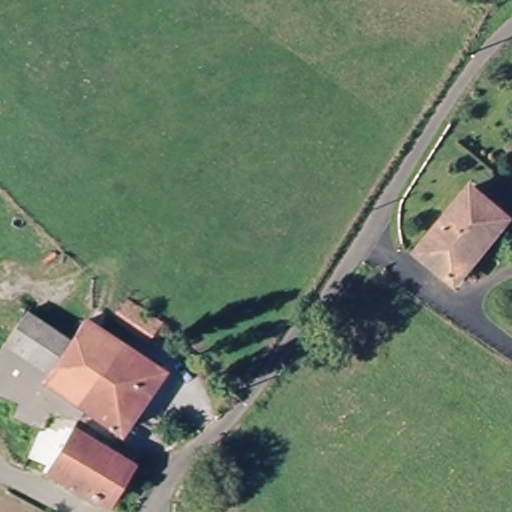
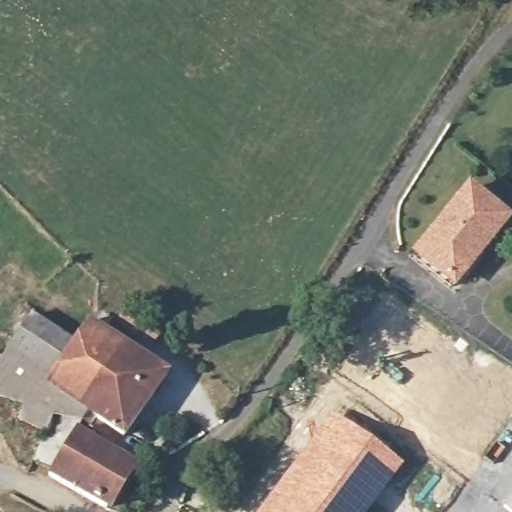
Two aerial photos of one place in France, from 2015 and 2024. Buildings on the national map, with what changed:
unchanged [(421,259),(473,195),(512,226),(461,290),(421,259)]
unchanged [(171,332),(159,348),(125,326),(138,308),(171,332)]
unchanged [(39,323),(82,350),(57,383),(15,358),(39,323)]
unchanged [(82,350),(97,328),(170,378),(126,441),(92,418),(51,392),(57,383),(82,350)]
unchanged [(12,356),(15,358),(57,383),(51,392),(92,418),(85,429),(53,418),(45,432),(22,424),(30,410),(0,400),(0,392),(12,356)]
new [(403,466),(368,512),(257,512),(332,411),(403,466)]
unchanged [(32,470),(54,435),(73,446),(79,436),(117,457),(121,450),(140,463),(108,512),(104,512),(65,492),(32,470)]

